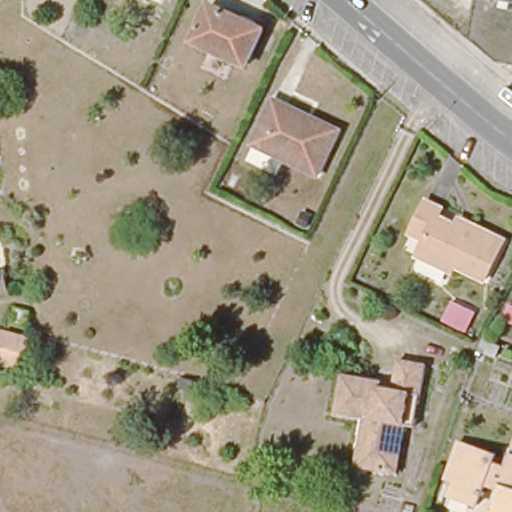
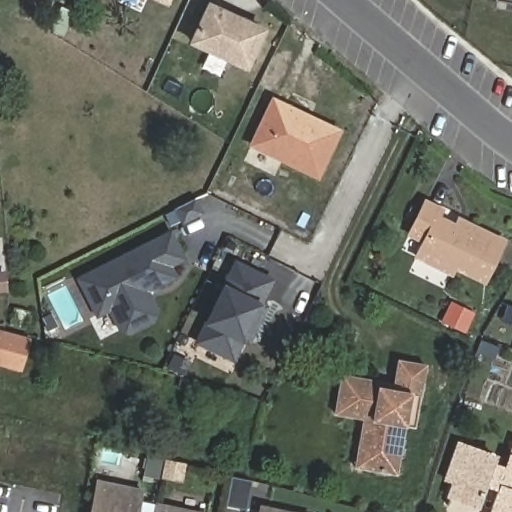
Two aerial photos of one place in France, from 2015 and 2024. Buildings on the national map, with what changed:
unchanged [(502,0),(512,0),(512,2),(502,0)]
unchanged [(219,15),(262,34),(246,71),(193,47),(206,18),(215,22),(219,15)]
unchanged [(318,175),(253,144),(273,100),(308,116),(304,124),(335,139),(318,175)]
new [(202,212),(183,221),(177,207),(195,198),(202,212)]
unchanged [(484,284),(421,257),(426,246),(411,239),(426,208),(441,214),(438,223),(457,231),(463,234),(466,228),(504,246),(484,284)]
new [(182,259),(168,266),(173,276),(155,286),(153,283),(145,287),(144,294),(147,295),(155,312),(151,321),(129,332),(120,330),(109,309),(96,315),(79,279),(169,234),(182,259)]
new [(242,339),(233,359),(198,342),(236,263),(271,280),(259,304),(265,307),(254,330),(248,342),(242,339)]
unchanged [(6,288),(0,289),(0,273),(4,272),(6,288)]
new [(450,300),(475,312),(466,330),(442,318),(450,300)]
unchanged [(13,367),(0,364),(0,332),(21,338),(13,367)]
unchanged [(380,382),(379,388),(394,391),(399,361),(425,366),(420,395),(410,393),(404,428),(396,473),(356,466),(365,418),(336,412),(343,376),(380,382)]
unchanged [(500,493),(485,487),(477,509),(450,500),(455,486),(447,483),(460,449),(495,461),(492,468),(507,474),(512,460),(512,512),(493,512),(500,493)]
new [(168,461),(185,464),(182,479),(164,475),(168,461)]
new [(98,481),(143,491),(139,512),(92,512),(98,481)]
new [(156,504),(191,512),(154,512),(156,504)]
new [(263,507),(286,512),(261,512),(263,507)]

